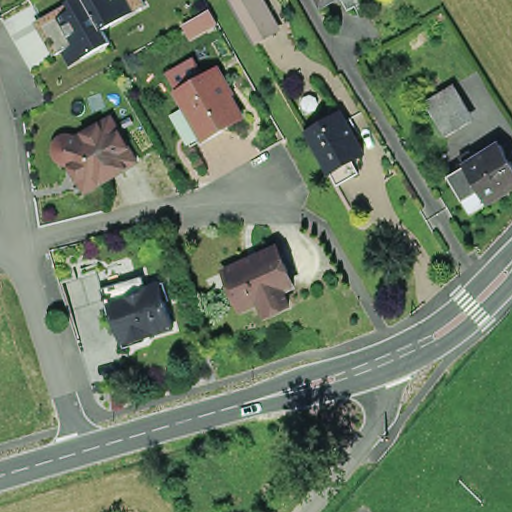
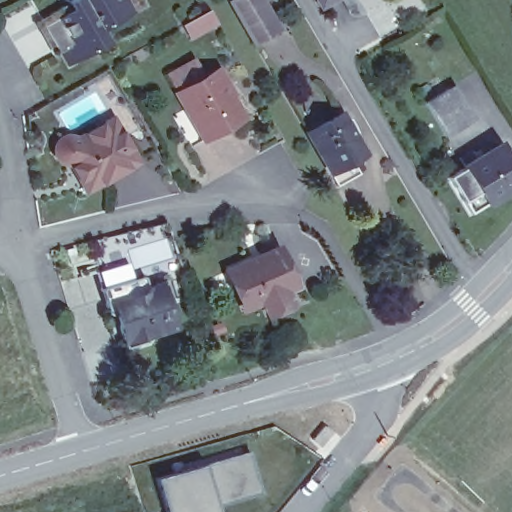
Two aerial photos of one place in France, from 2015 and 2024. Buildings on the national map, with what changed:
unchanged [(65,52),(50,25),(79,9),(74,1),(76,0),(144,0),(148,7),(108,30),(115,43),(87,58),(75,65),(67,51),(65,52)]
unchanged [(242,0),(265,0),(282,31),(262,43),(239,2),(242,0)]
unchanged [(320,5),(317,0),(341,0),(323,11),(320,5)]
new [(222,26),(192,41),(184,27),(211,10),(222,26)]
unchanged [(179,116),(192,109),(182,93),(224,69),(232,85),(230,86),(249,118),(210,140),(197,147),(179,116)]
unchanged [(431,102),(454,88),(475,122),(452,136),(431,102)]
unchanged [(87,180),(72,153),(71,153),(70,154),(69,154),(67,153),(65,153),(64,152),(62,151),(61,150),(60,150),(60,149),(59,148),(58,147),(57,146),(57,145),(56,144),(56,143),(55,141),(55,140),(55,139),(55,138),(55,137),(56,136),(56,135),(57,134),(57,133),(57,132),(58,131),(59,131),(60,130),(60,129),(61,128),(62,128),(63,127),(64,126),(65,126),(67,126),(68,126),(69,125),(70,125),(71,126),(72,126),(73,126),(74,126),(75,126),(76,127),(77,128),(78,128),(79,129),(99,117),(112,109),(124,130),(137,151),(87,180)]
unchanged [(338,181),(332,170),(331,168),(325,158),(325,156),(308,128),(342,109),(365,149),(352,156),(360,169),(338,181)]
unchanged [(460,177),(475,166),(470,159),(480,153),(485,161),(512,145),(512,194),(498,203),(482,213),(460,177)]
unchanged [(296,287),(286,291),(292,305),(269,316),(262,302),(245,310),(235,286),(227,271),(241,265),(279,248),(296,287)]
unchanged [(173,305),(168,307),(176,333),(150,341),(150,343),(149,345),(145,347),(127,353),(120,332),(120,330),(120,328),(124,326),(122,318),(116,320),(113,321),(110,320),(110,317),(103,294),(127,287),(134,285),(145,281),(149,293),(167,287),(173,305)]
new [(160,478),(250,452),(262,494),(222,507),(223,512),(168,512),(160,478)]

